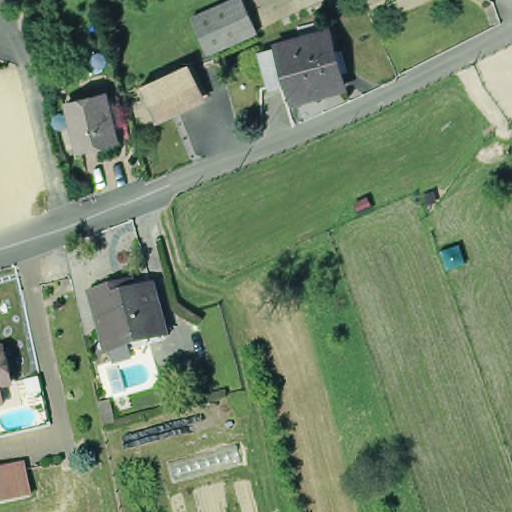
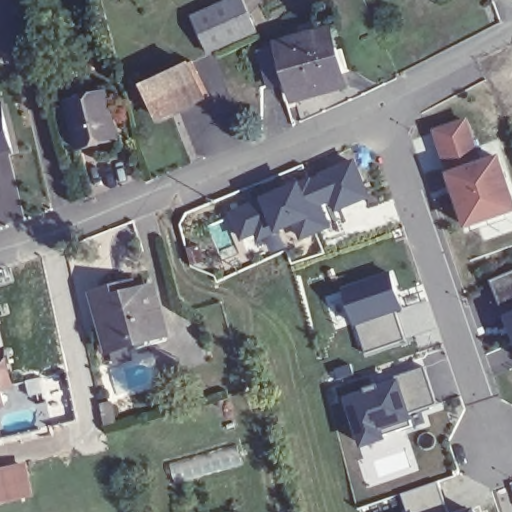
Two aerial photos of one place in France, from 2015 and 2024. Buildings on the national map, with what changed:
unchanged [(208,57),(192,17),(230,0),(242,0),(258,34),(208,57)]
unchanged [(291,90),(281,92),(276,70),(286,67),(282,54),(286,53),(306,47),(303,35),(329,29),(332,41),(347,96),(310,107),(296,110),(291,90)]
unchanged [(193,63),(208,95),(160,117),(145,85),(193,63)]
unchanged [(111,99),(121,144),(81,151),(72,108),(73,106),(111,99)]
new [(3,116),(11,147),(0,150),(0,105),(3,116)]
new [(447,173),(432,130),(467,118),(483,161),(501,155),(512,186),(512,216),(466,231),(447,173)]
new [(335,214),(330,202),(322,205),(332,229),(301,241),(295,227),(257,241),(255,236),(241,241),(230,212),(263,199),(300,182),(355,160),(371,197),(335,214)]
new [(365,355),(355,326),(341,287),(392,270),(406,310),(395,313),(405,340),(365,355)]
new [(512,271),(512,331),(507,320),(491,280),(512,271)]
unchanged [(105,357),(90,301),(111,295),(114,304),(147,293),(153,312),(162,340),(145,346),(127,351),(123,352),(126,364),(110,369),(107,356),(105,357)]
unchanged [(0,351),(12,350),(19,381),(15,382),(17,396),(0,402),(0,350),(0,351)]
new [(436,407),(412,415),(415,421),(410,423),(412,428),(386,437),(387,441),(361,450),(343,398),(393,381),(391,377),(423,367),(436,407)]
unchanged [(27,460),(35,495),(0,503),(0,466),(27,460)]
new [(467,507),(469,512),(452,512),(467,507)]

